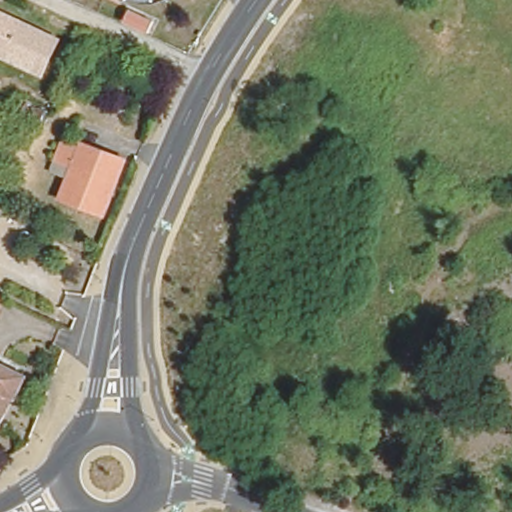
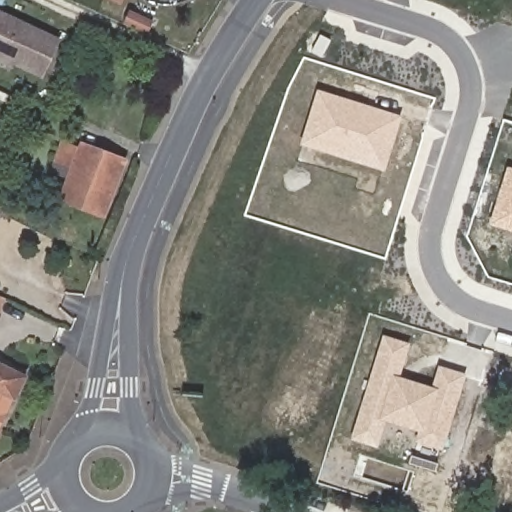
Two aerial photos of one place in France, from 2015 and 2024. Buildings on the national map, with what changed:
unchanged [(122,6),(106,0),(125,0),(122,6)]
unchanged [(6,54),(0,51),(0,7),(23,18),(6,54)]
unchanged [(64,37),(45,72),(6,54),(23,18),(64,37)]
new [(319,35),(329,40),(322,57),(311,52),(319,35)]
new [(398,118),(383,168),(303,144),(318,93),(398,118)]
unchanged [(20,116),(29,101),(51,112),(45,128),(20,116)]
unchanged [(79,151),(81,144),(125,162),(104,217),(60,199),(67,178),(52,172),(56,160),(62,145),(79,151)]
new [(508,170),(512,171),(512,229),(491,223),(508,170)]
unchanged [(8,299),(0,318),(0,295),(8,299)]
new [(375,444),(354,438),(384,339),(405,346),(395,379),(433,391),(440,370),(462,377),(440,448),(417,441),(421,430),(383,418),(375,444)]
unchanged [(25,373),(15,395),(11,394),(0,415),(0,360),(25,373)]
new [(438,464),(435,472),(407,463),(410,455),(438,464)]

